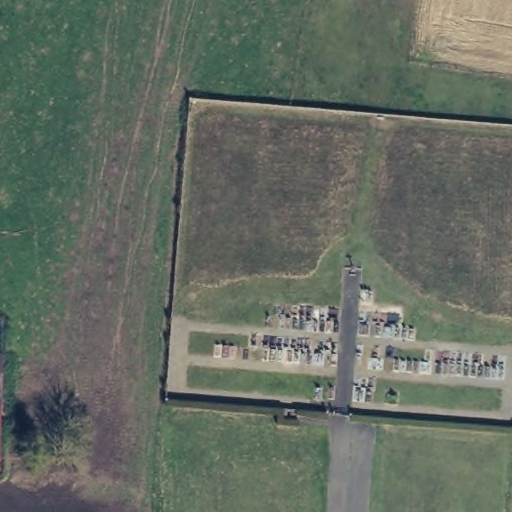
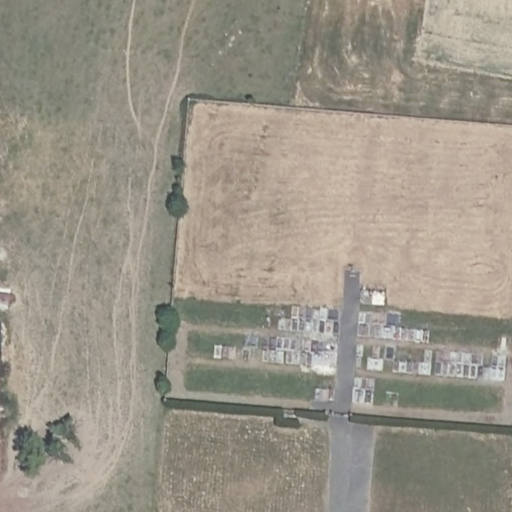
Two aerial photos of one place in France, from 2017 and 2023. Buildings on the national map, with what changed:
unchanged [(0,404),(0,381),(1,404),(0,404)]
unchanged [(0,428),(0,404),(1,404),(0,428)]

